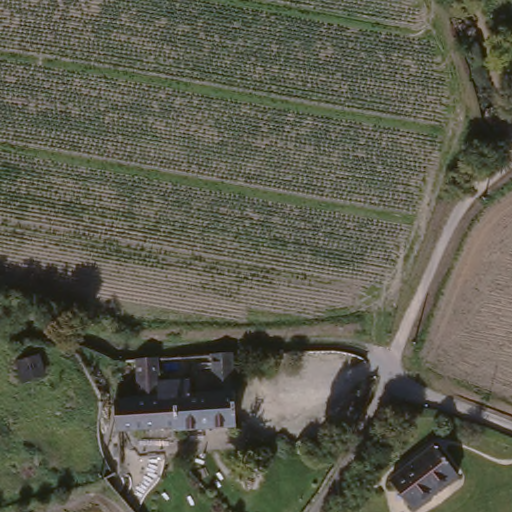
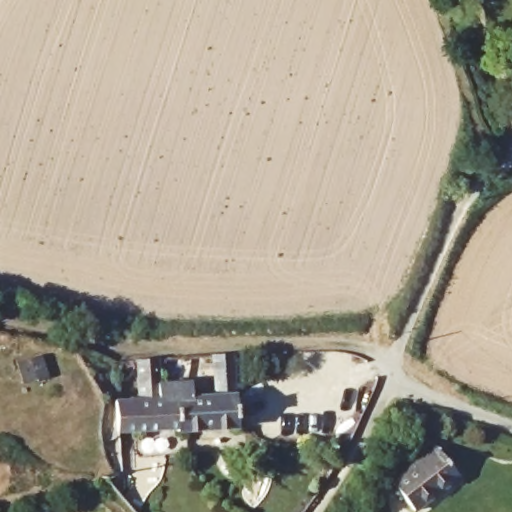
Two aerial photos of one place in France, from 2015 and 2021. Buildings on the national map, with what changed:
unchanged [(119,435),(116,405),(141,403),(139,363),(154,362),(158,362),(161,388),(191,386),(193,399),(215,398),(213,358),(233,357),(238,431),(178,435),(177,431),(119,435)]
unchanged [(408,511),(386,481),(431,447),(453,477),(408,511)]

